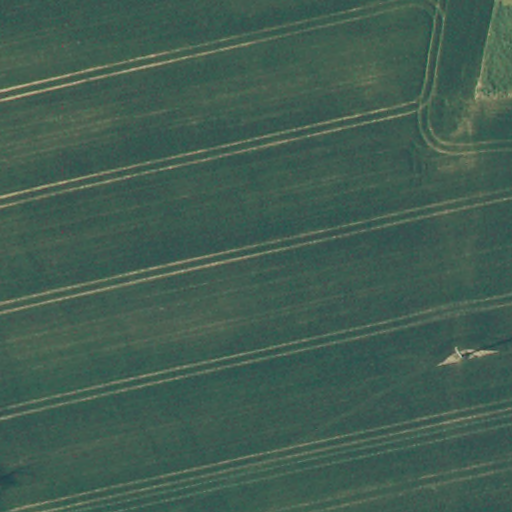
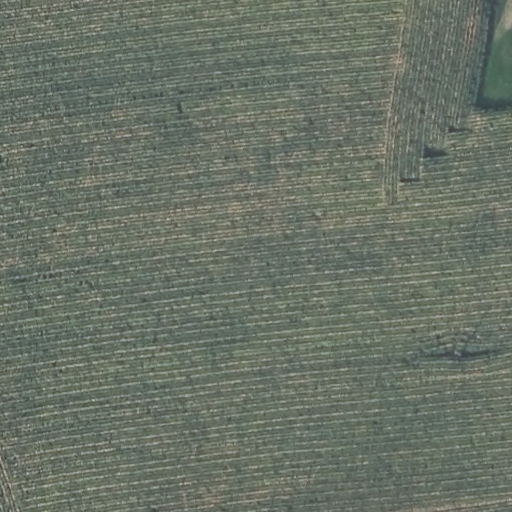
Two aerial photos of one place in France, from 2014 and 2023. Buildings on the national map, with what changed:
[]

